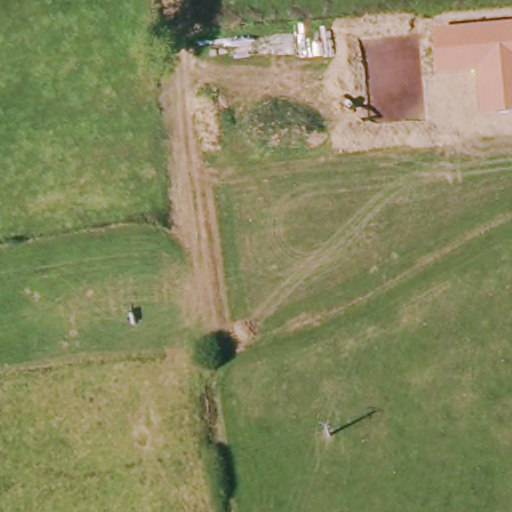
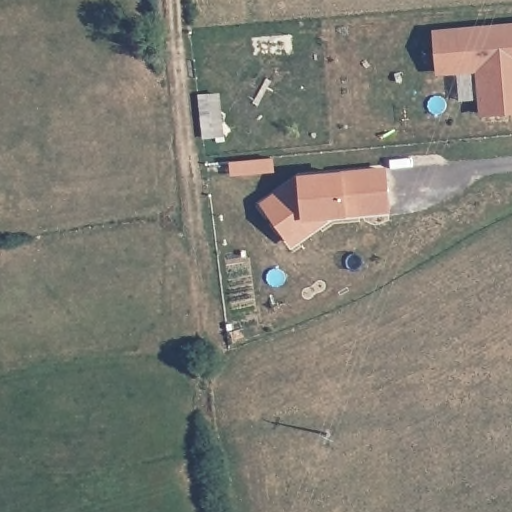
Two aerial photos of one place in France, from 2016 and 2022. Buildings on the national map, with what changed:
unchanged [(476,73),(436,76),(433,30),(512,23),(512,116),(480,119),(476,73)]
new [(198,95),(221,93),(225,136),(203,139),(198,95)]
new [(387,168),(390,212),(348,214),(348,217),(332,217),(291,246),(261,202),(300,174),(342,171),(387,168)]

